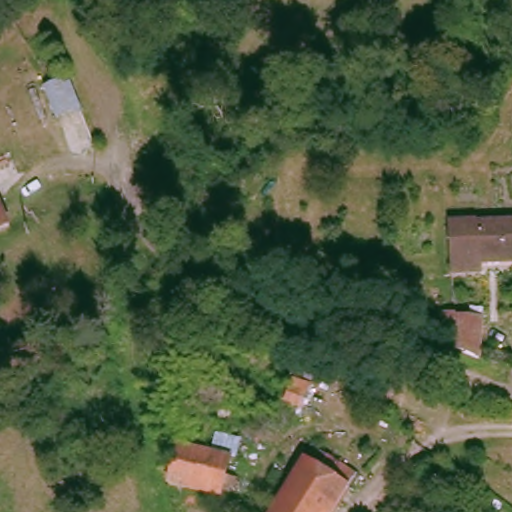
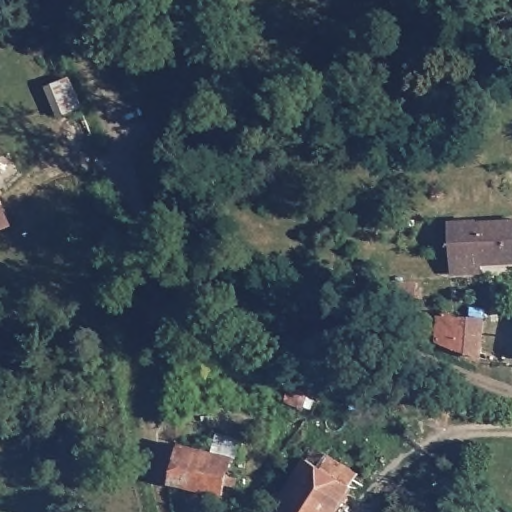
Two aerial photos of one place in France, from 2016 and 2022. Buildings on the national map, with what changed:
unchanged [(81,119),(77,107),(58,114),(40,69),(66,59),(82,105),(86,117),(81,119)]
unchanged [(0,221),(0,199),(8,217),(0,221)]
unchanged [(450,222),(479,220),(480,225),(512,223),(512,260),(482,262),(484,271),(455,274),(450,222)]
unchanged [(418,319),(372,312),(375,277),(422,281),(418,319)]
unchanged [(439,347),(441,317),(483,322),(480,361),(439,347)]
unchanged [(171,483),(181,444),(233,457),(225,494),(171,483)]
unchanged [(355,482),(336,512),(278,512),(314,453),(355,482)]

